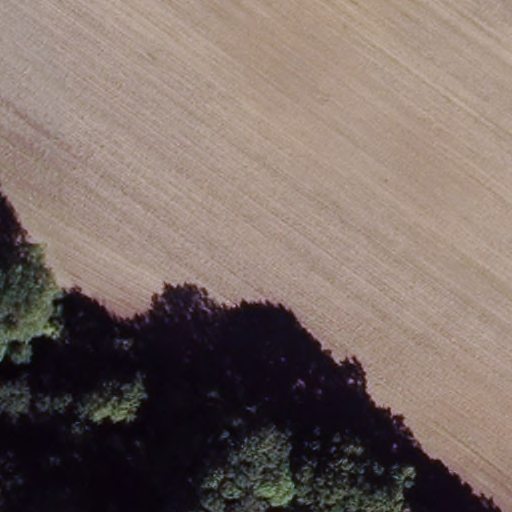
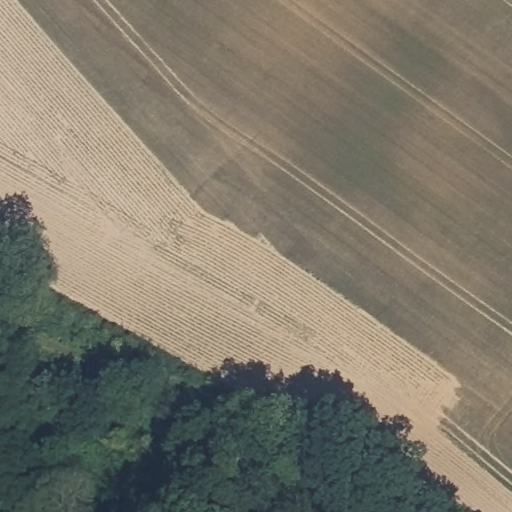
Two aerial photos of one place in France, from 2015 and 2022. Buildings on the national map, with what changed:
[]

